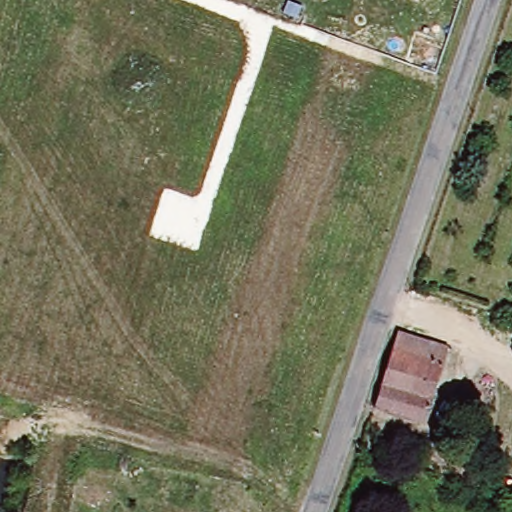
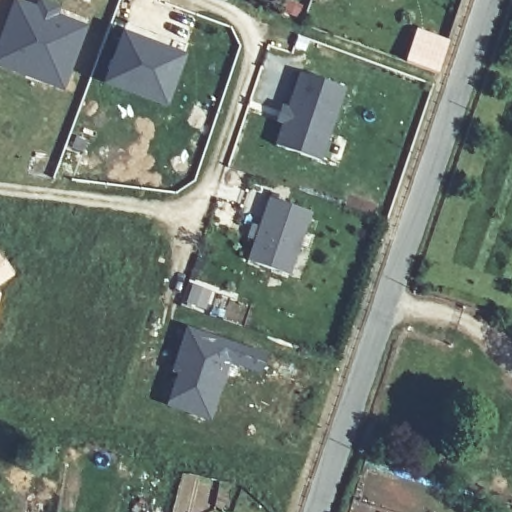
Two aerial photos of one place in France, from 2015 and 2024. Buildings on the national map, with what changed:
new [(13,70),(0,65),(0,36),(14,0),(40,10),(44,1),(61,7),(58,16),(84,26),(65,75),(61,88),(13,70)]
new [(418,34),(450,45),(440,77),(408,65),(418,34)]
new [(123,35),(182,57),(164,105),(137,95),(105,83),(110,70),(123,35)]
new [(303,74),(346,89),(321,162),(279,148),(303,74)]
new [(272,200),(311,213),(290,276),(250,263),(272,200)]
new [(15,274),(0,286),(0,255),(15,274)]
unchanged [(463,312),(485,318),(482,330),(460,323),(463,312)]
new [(190,332),(234,347),(210,419),(165,404),(190,332)]
unchanged [(396,333),(444,349),(418,424),(371,408),(396,333)]

